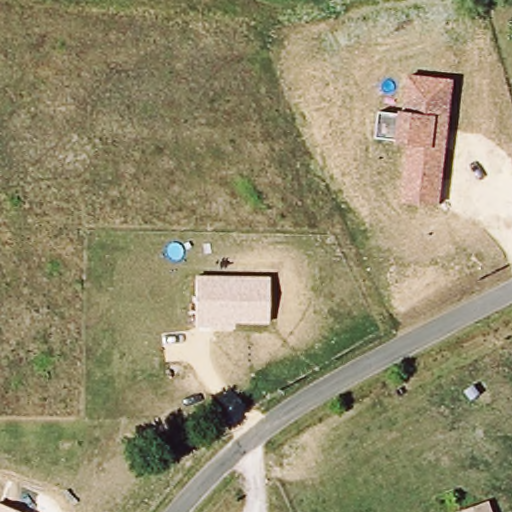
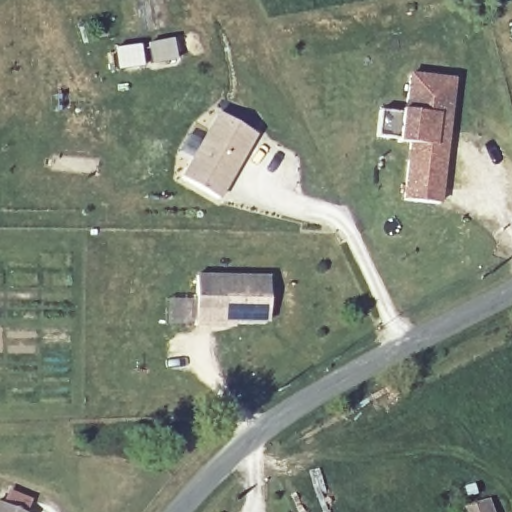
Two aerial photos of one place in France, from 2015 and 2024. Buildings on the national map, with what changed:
unchanged [(441,203),(402,198),(408,144),(376,140),(380,110),(405,113),(408,74),(455,79),(441,203)]
new [(220,204),(183,184),(218,118),(256,139),(240,169),(230,187),(220,204)]
unchanged [(270,277),(267,327),(194,326),(196,275),(270,277)]
unchanged [(20,512),(0,512),(0,504),(20,512)]
unchanged [(461,509),(476,504),(479,512),(462,512),(461,509)]

